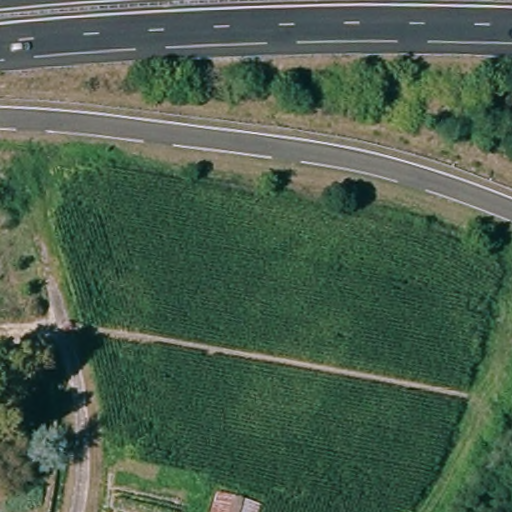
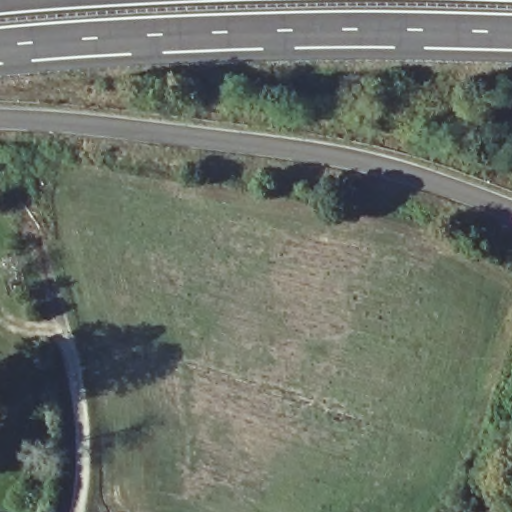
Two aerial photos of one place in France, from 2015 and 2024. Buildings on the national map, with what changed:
demolished [(217,494),(266,504),(263,512),(213,512),(217,494)]

